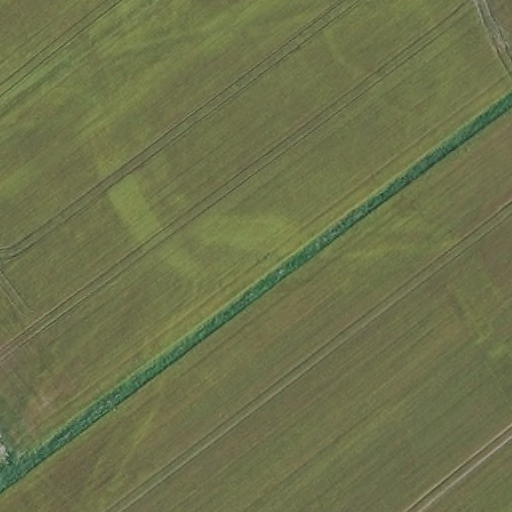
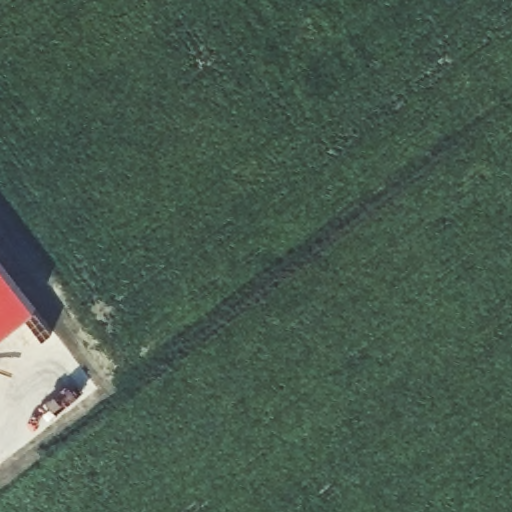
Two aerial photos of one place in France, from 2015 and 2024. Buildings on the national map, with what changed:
new [(37,309),(0,337),(0,261),(37,309)]

